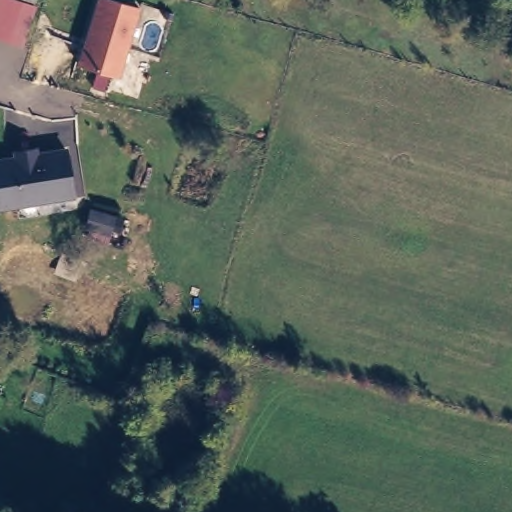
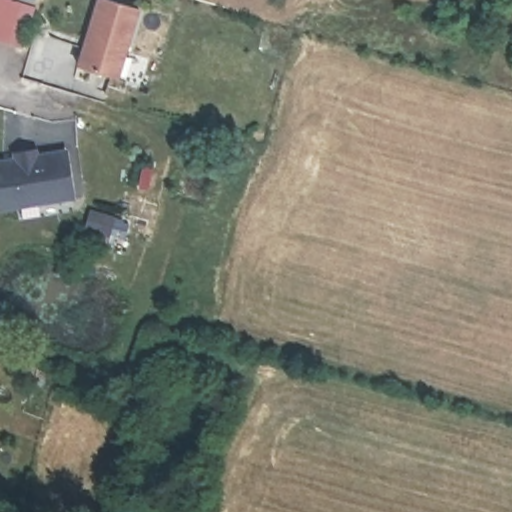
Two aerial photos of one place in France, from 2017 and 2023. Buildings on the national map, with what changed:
unchanged [(24,48),(0,40),(0,0),(5,0),(36,10),(24,48)]
unchanged [(22,0),(38,0),(36,4),(22,0)]
unchanged [(111,0),(139,9),(118,75),(74,66),(94,0),(111,0)]
unchanged [(0,210),(0,158),(13,157),(11,151),(36,146),(38,151),(66,146),(74,198),(0,210)]
unchanged [(108,230),(89,225),(83,222),(88,204),(94,206),(113,211),(108,230)]

